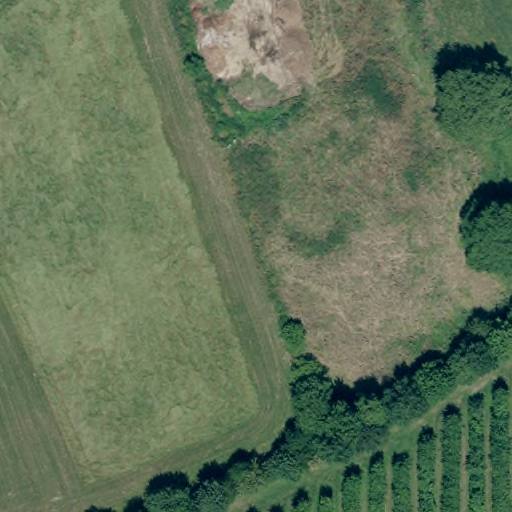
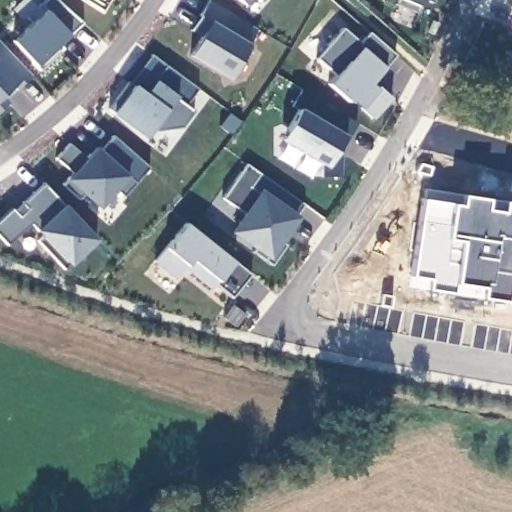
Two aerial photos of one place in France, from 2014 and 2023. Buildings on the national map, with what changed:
new [(60,46),(64,50),(60,53),(40,72),(12,42),(32,24),(27,18),(46,0),(56,0),(82,24),(83,25),(60,46)]
new [(100,2),(97,0),(101,0),(100,2)]
new [(247,3),(243,0),(250,0),(247,3)]
new [(433,5),(423,1),(417,16),(395,6),(397,0),(435,0),(433,5)]
new [(257,31),(248,46),(252,47),(239,69),(218,74),(190,57),(210,24),(199,17),(209,2),(257,31)]
new [(343,29),(361,44),(369,34),(395,56),(385,67),(371,82),(377,87),(392,98),(373,118),(361,109),(351,99),(349,102),(328,82),(334,76),(318,59),(343,29)]
new [(30,77),(15,91),(12,87),(1,97),(8,104),(0,111),(0,44),(30,77)]
new [(130,85),(152,56),(166,67),(198,91),(186,107),(194,112),(182,129),(157,132),(153,130),(146,139),(108,111),(128,84),(130,85)]
new [(299,109),(294,106),(301,91),(356,123),(345,135),(328,167),(281,140),(299,109)]
new [(123,195),(115,191),(100,209),(65,179),(70,173),(58,157),(69,144),(84,159),(94,147),(96,148),(112,137),(147,169),(123,195)]
new [(246,166),(304,207),(286,232),(279,242),(285,247),(271,267),(251,254),(255,248),(234,233),(245,217),(222,200),(246,166)]
new [(16,211),(24,204),(46,183),(98,240),(66,270),(39,242),(44,237),(33,224),(9,246),(0,235),(0,221),(14,207),(16,211)]
new [(232,300),(215,287),(212,291),(185,270),(177,281),(155,263),(186,225),(234,263),(251,277),(232,300)]

